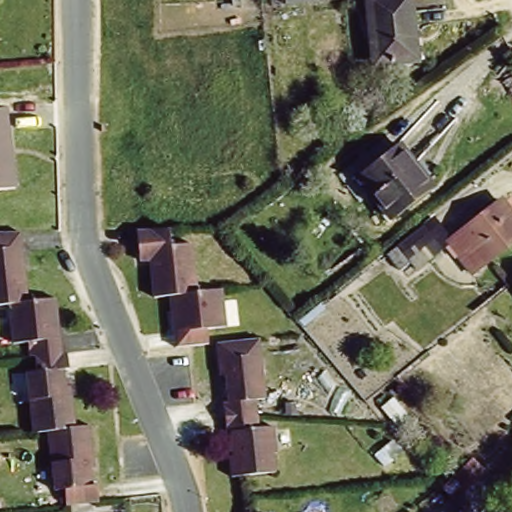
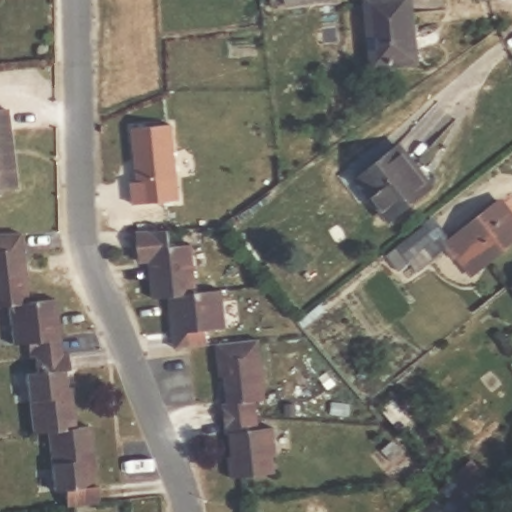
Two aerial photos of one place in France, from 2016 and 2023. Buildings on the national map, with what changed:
unchanged [(301,0),(339,0),(301,4),(301,0)]
unchanged [(371,68),(365,0),(412,0),(419,63),(371,68)]
unchanged [(9,109),(18,188),(0,189),(0,110),(9,109)]
new [(133,204),(131,183),(138,181),(133,128),(173,123),(181,200),(133,204)]
unchanged [(432,188),(389,217),(359,174),(402,145),(432,188)]
unchanged [(449,245),(415,272),(408,260),(399,269),(384,249),(434,213),(449,238),(502,193),(512,205),(512,244),(470,275),(449,245)]
unchanged [(170,288),(150,298),(146,259),(134,258),(134,225),(168,224),(168,247),(193,241),(199,290),(224,285),(227,325),(204,331),(206,345),(173,347),(170,288)]
unchanged [(23,228),(30,302),(55,299),(60,355),(39,358),(31,358),(29,343),(15,345),(10,304),(0,304),(0,248),(1,248),(0,233),(0,228),(23,228)]
unchanged [(259,336),(263,391),(257,392),(259,412),(226,415),(224,397),(230,397),(228,370),(220,371),(218,339),(259,336)]
unchanged [(60,355),(69,355),(72,367),(66,368),(71,391),(75,390),(78,429),(52,431),(35,433),(28,374),(41,371),(39,358),(60,355)]
unchanged [(259,412),(259,424),(274,423),(277,453),(273,453),(275,471),(230,474),(228,455),(234,455),(233,430),(227,431),(226,415),(259,412)]
unchanged [(78,429),(88,428),(88,431),(94,431),(96,464),(92,464),(94,484),(100,483),(103,500),(99,500),(100,504),(68,507),(66,490),(58,491),(52,431),(78,429)]
unchanged [(463,509),(439,484),(471,455),(494,481),(478,497),(492,512),(460,512),(463,509)]
unchanged [(258,512),(252,512),(252,511),(258,512)]

